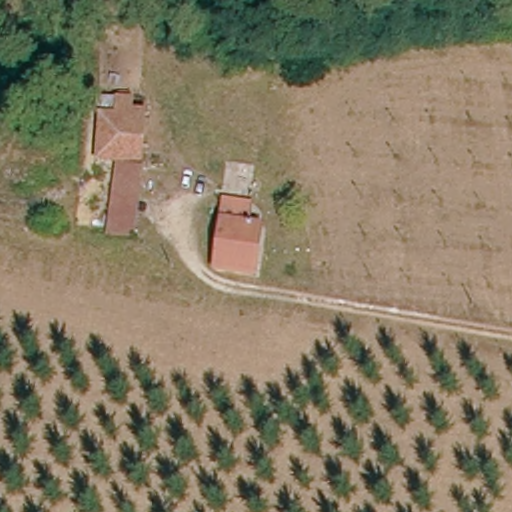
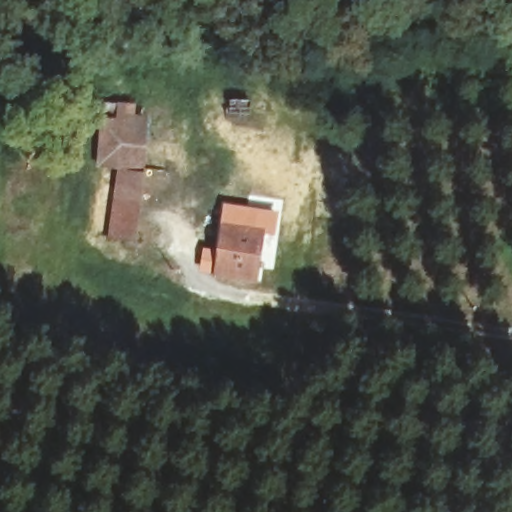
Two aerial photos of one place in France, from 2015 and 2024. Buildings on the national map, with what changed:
unchanged [(110,123),(110,111),(129,111),(129,127),(138,127),(139,166),(131,166),(92,166),(92,124),(110,123)]
unchanged [(131,175),(128,243),(112,242),(114,174),(131,175)]
unchanged [(247,236),(256,238),(247,283),(209,276),(217,231),(220,215),(250,221),(247,236)]

